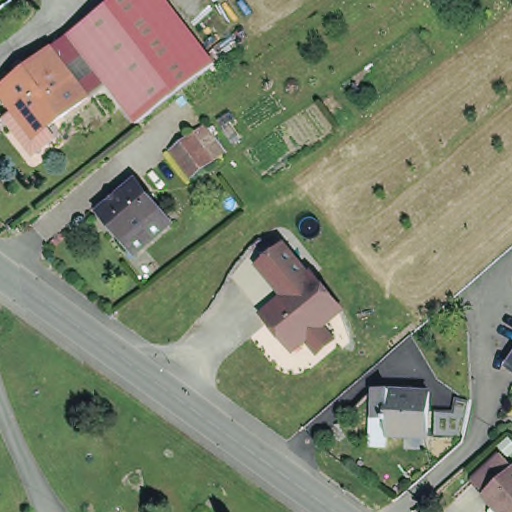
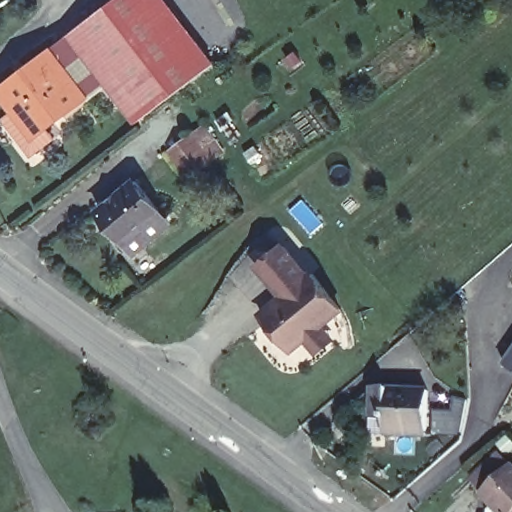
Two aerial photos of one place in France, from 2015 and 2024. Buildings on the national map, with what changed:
unchanged [(69,31),(100,8),(112,0),(170,0),(216,64),(153,111),(138,122),(69,31)]
unchanged [(84,97),(38,132),(18,105),(11,110),(1,96),(29,74),(28,71),(26,65),(48,48),(51,52),(84,97)]
unchanged [(174,146),(194,131),(213,155),(193,170),(174,146)]
unchanged [(127,236),(125,233),(104,206),(123,192),(120,190),(138,176),(161,204),(163,206),(173,218),(155,233),(145,221),(127,236)]
unchanged [(257,263),(283,240),(309,273),(313,270),(344,310),(326,326),(335,340),(311,357),(301,346),(289,354),(261,314),(278,295),(257,263)]
unchanged [(512,373),(501,367),(512,345),(512,373)]
unchanged [(374,409),(373,385),(428,384),(429,430),(387,430),(387,408),(374,409)]
unchanged [(481,472),(508,447),(512,451),(512,505),(494,486),(481,472)]

